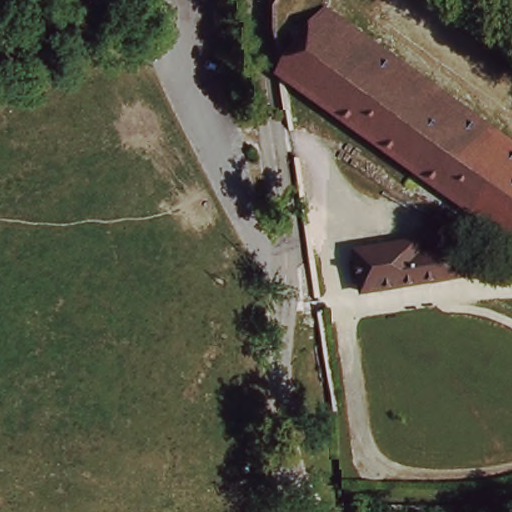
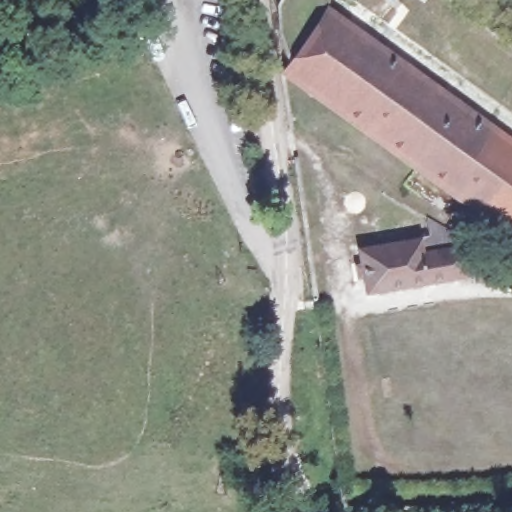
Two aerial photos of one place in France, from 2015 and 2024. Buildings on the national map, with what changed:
unchanged [(512,152),(512,234),(289,62),(329,11),(512,152)]
unchanged [(423,227),(417,213),(445,206),(458,266),(361,291),(347,248),(423,227)]

